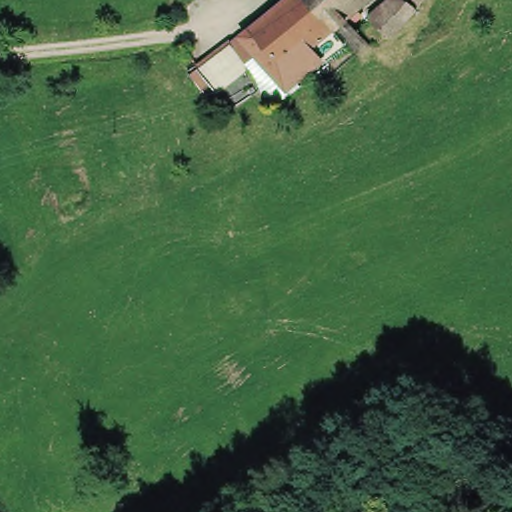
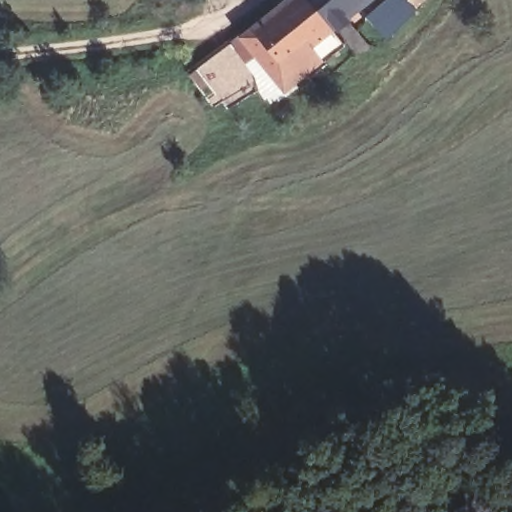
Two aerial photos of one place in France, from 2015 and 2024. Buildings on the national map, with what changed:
unchanged [(330,26),(339,40),(275,94),(255,70),(220,100),(190,64),(274,0),(364,0),(330,26)]
unchanged [(392,33),(367,16),(389,0),(398,0),(421,12),(392,33)]

